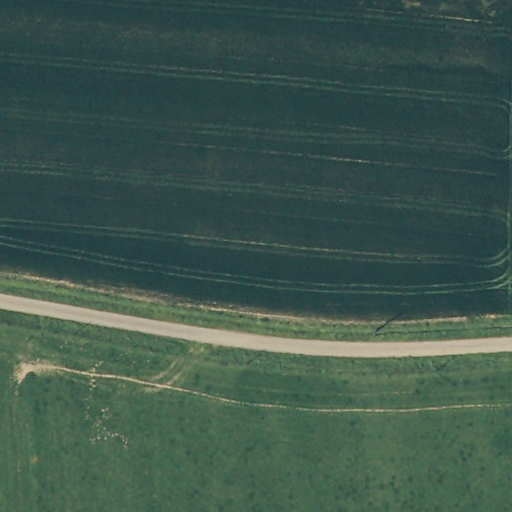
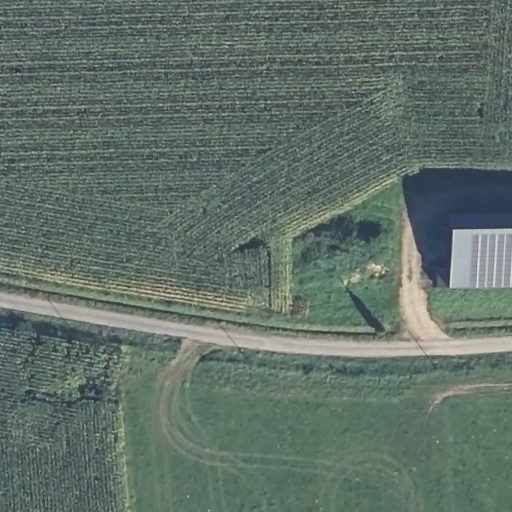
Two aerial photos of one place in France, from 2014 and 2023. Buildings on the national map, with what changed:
new [(512,227),(512,286),(444,287),(443,228),(512,227)]

